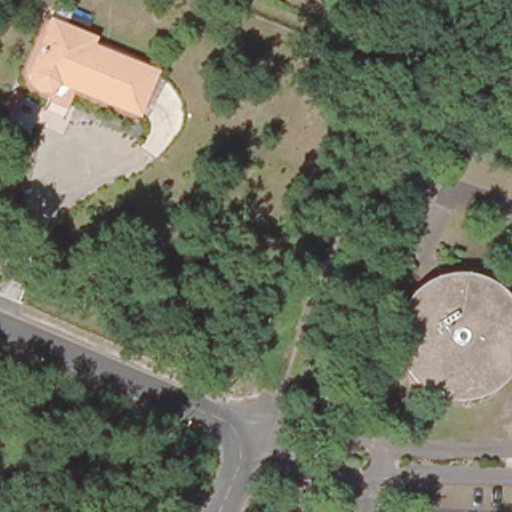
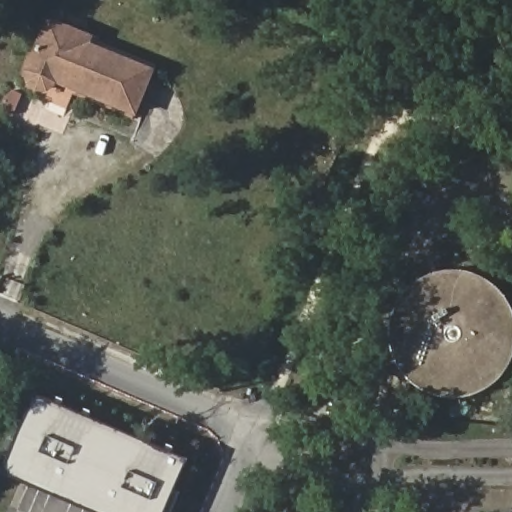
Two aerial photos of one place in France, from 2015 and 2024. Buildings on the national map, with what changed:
unchanged [(37,92),(25,83),(29,66),(52,11),(98,31),(93,41),(157,69),(139,114),(79,90),(70,120),(44,109),(59,79),(50,87),(37,92)]
unchanged [(398,316),(399,312),(400,307),(400,304),(401,301),(403,297),(405,295),(405,292),(407,290),(410,286),(413,282),(419,287),(438,273),(436,266),(438,265),(443,263),(447,263),(452,262),(456,262),(461,262),(466,263),(472,265),(477,266),(483,270),(491,275),(498,281),(502,285),(505,290),(508,296),(510,301),(512,307),(512,331),(510,338),(508,345),(505,350),(502,353),(500,357),(496,360),(493,364),(490,366),(486,370),(481,371),(478,373),(474,375),(470,376),(465,376),(460,377),(456,377),(451,377),(446,376),(440,375),(435,373),(428,370),(422,366),(416,361),(413,358),(410,354),(406,349),(403,343),(401,337),(400,333),(398,327),(398,321),(398,316)]
new [(92,512),(2,473),(37,395),(190,461),(169,512),(92,512)]
unchanged [(288,507),(290,505),(292,505),(294,503),(296,503),(298,503),(301,503),(305,505),(307,506),(310,509),(311,511),(311,512),(286,512),(287,509),(288,507)]

